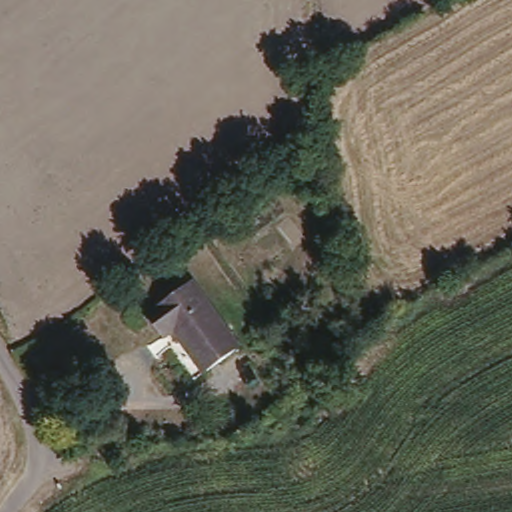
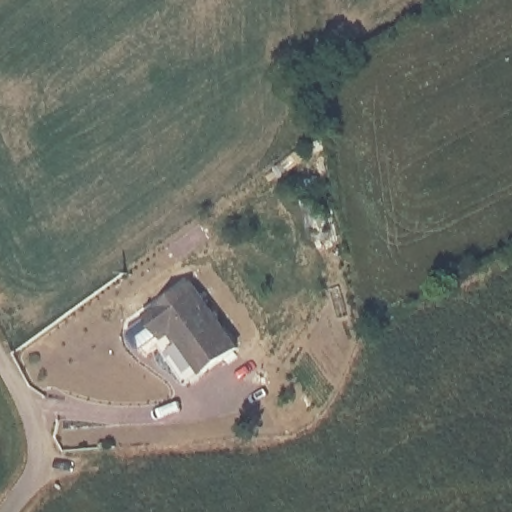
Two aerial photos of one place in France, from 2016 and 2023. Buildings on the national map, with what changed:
unchanged [(251,345),(219,369),(185,327),(175,334),(154,303),(196,272),(251,345)]

